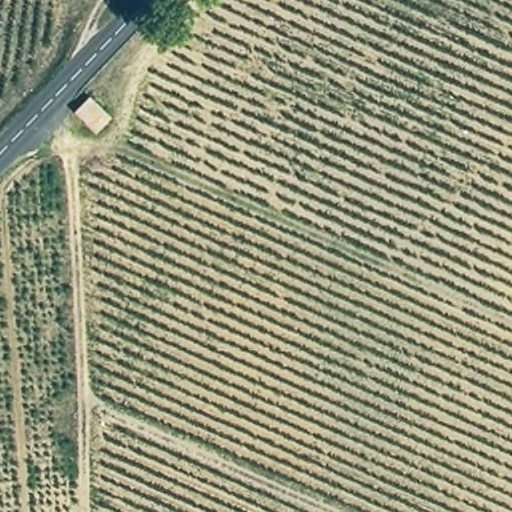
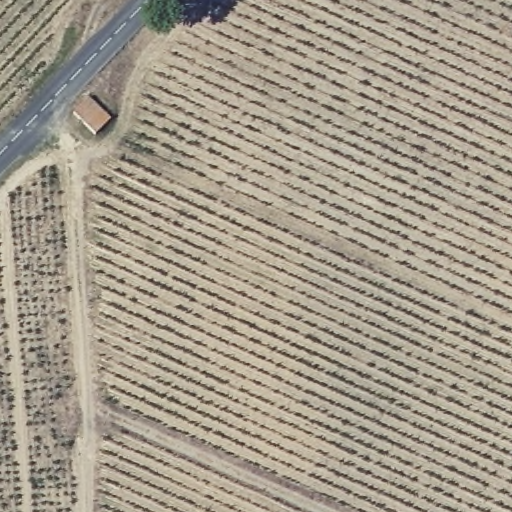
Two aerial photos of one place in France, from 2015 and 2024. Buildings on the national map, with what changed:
unchanged [(95,139),(73,119),(90,100),(112,119),(95,139)]

